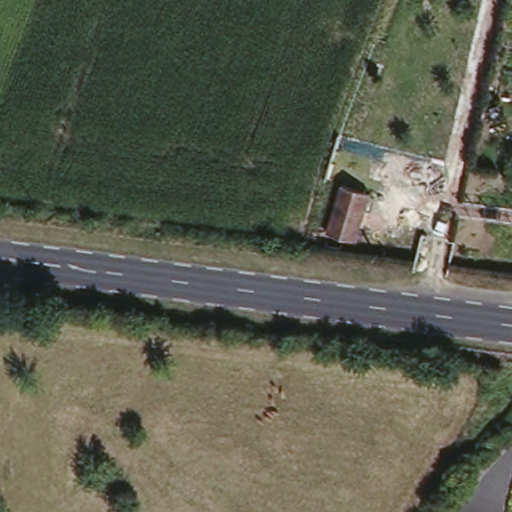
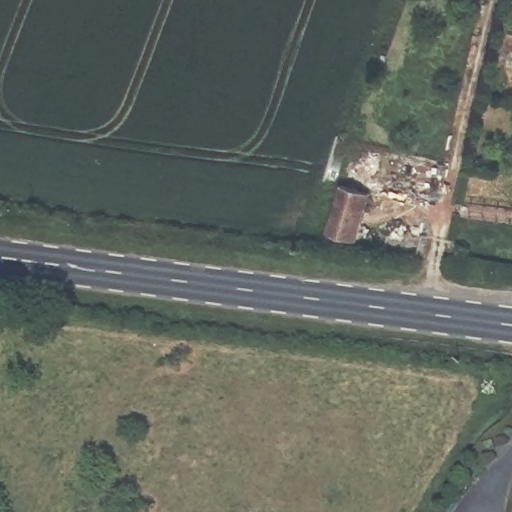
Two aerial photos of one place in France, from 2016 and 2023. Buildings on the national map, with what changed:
unchanged [(339,182),(365,187),(354,236),(326,230),(339,182)]

